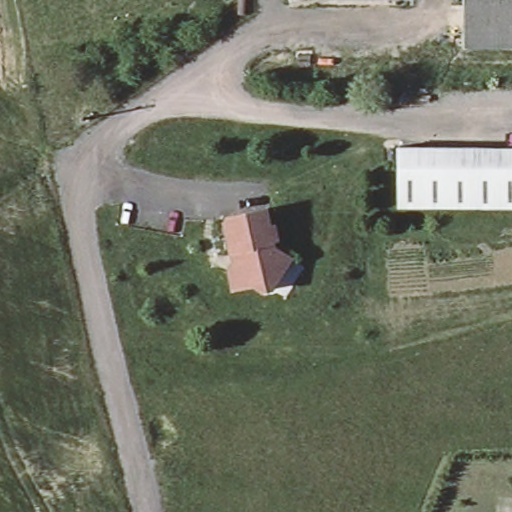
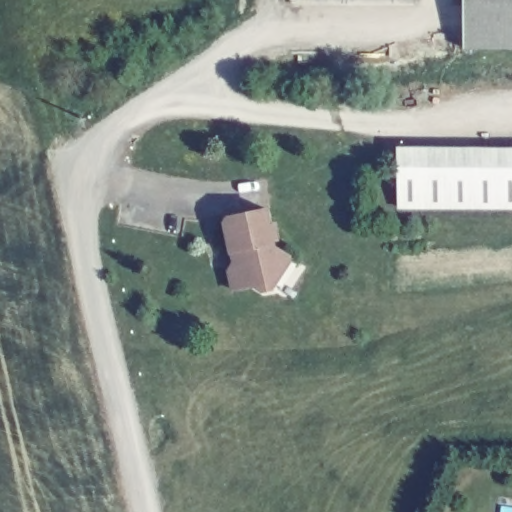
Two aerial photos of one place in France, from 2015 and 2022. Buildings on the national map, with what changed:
unchanged [(512,45),(467,45),(467,0),(512,0),(512,45)]
unchanged [(512,211),(397,209),(397,149),(512,151),(512,211)]
unchanged [(283,273),(275,286),(265,288),(256,283),(235,288),(230,269),(236,262),(236,261),(234,250),(227,219),(229,215),(269,207),(272,224),(277,223),(280,236),(275,237),(277,246),(287,252),(294,257),(283,273)]

